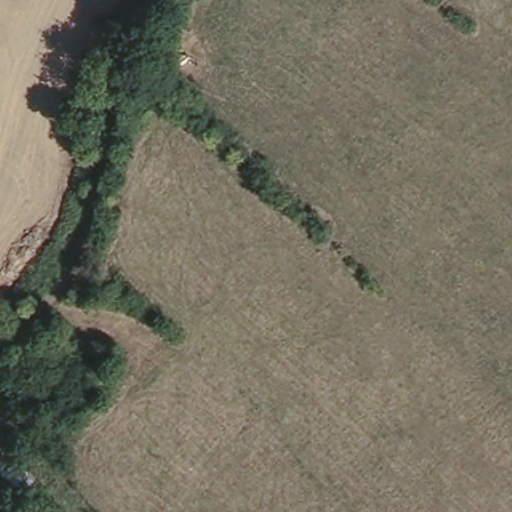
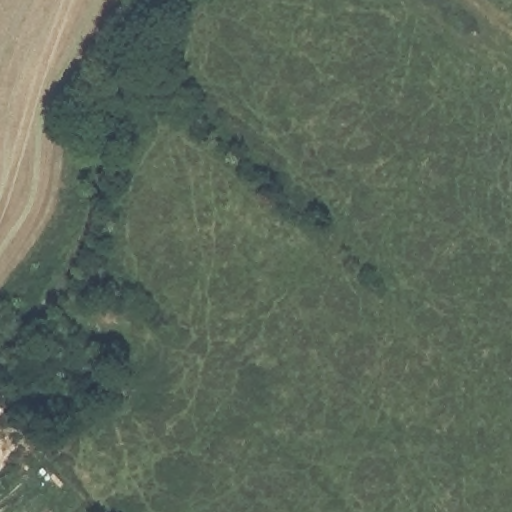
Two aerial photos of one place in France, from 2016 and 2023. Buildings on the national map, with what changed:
unchanged [(0,422),(0,418),(2,420),(0,422)]
unchanged [(7,452),(13,445),(8,440),(12,437),(16,442),(28,457),(20,466),(10,457),(7,452)]

